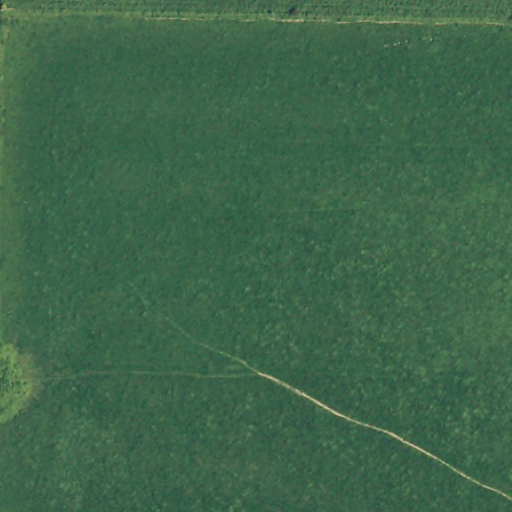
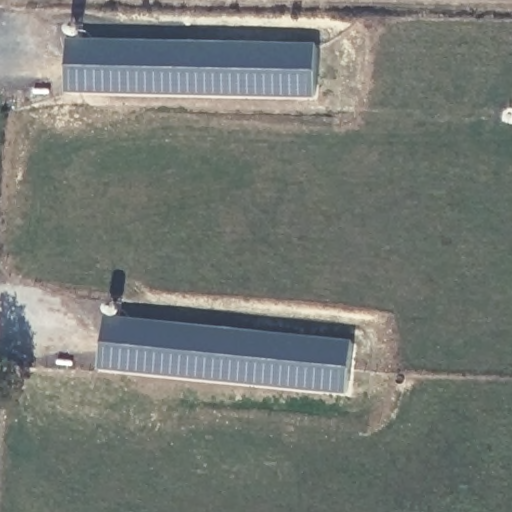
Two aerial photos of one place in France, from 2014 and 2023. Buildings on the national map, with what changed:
new [(66,38),(311,44),(312,98),(64,94),(66,38)]
new [(103,315),(348,340),(342,394),(97,369),(103,315)]

